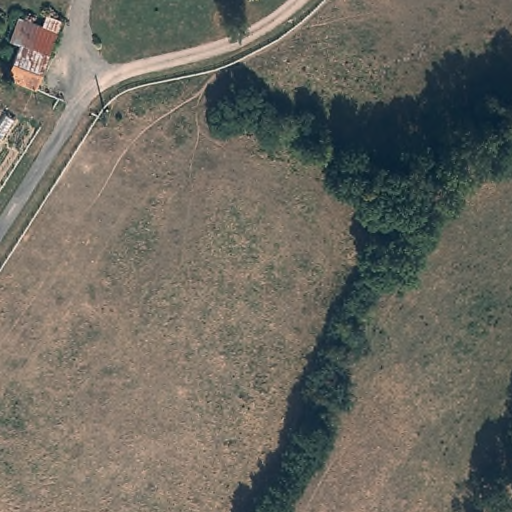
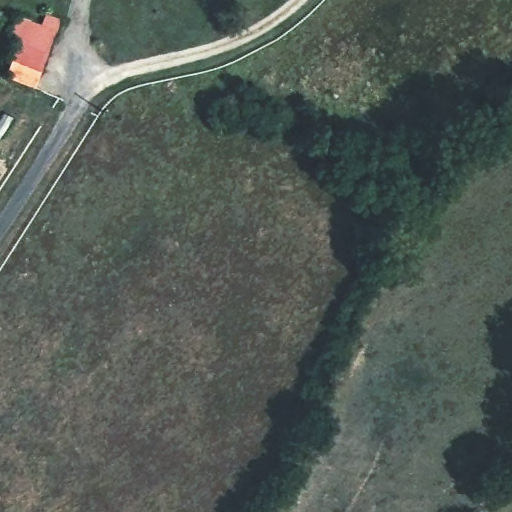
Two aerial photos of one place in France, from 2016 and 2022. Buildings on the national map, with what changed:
unchanged [(61,36),(34,88),(4,75),(26,18),(61,36)]

